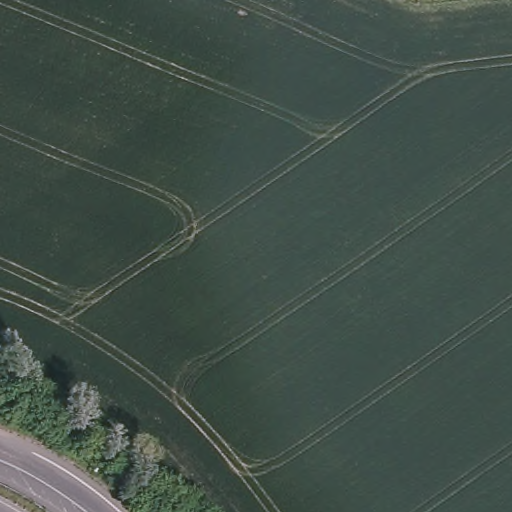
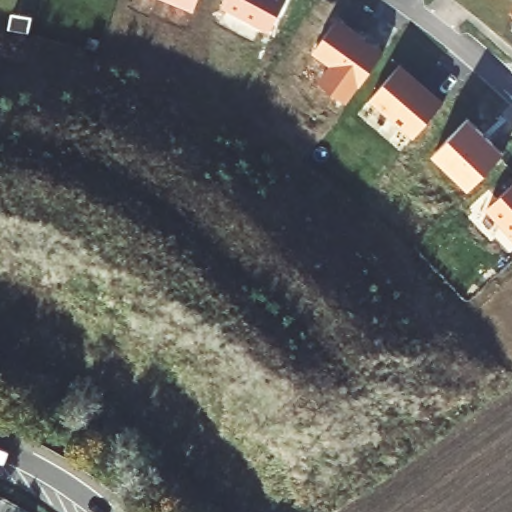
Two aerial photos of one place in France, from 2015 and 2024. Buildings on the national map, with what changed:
new [(196,9),(175,0),(200,0),(196,9)]
new [(270,33),(224,7),(228,0),(286,0),(270,33)]
new [(385,53),(347,102),(320,81),(332,65),(313,52),(338,18),(385,53)]
new [(445,102),(415,138),(370,100),(401,63),(445,102)]
new [(503,153),(468,189),(432,154),(469,117),(503,153)]
new [(487,207),(512,184),(512,235),(487,207)]

